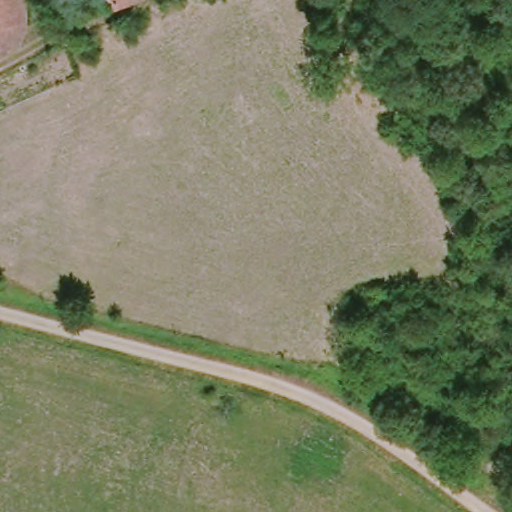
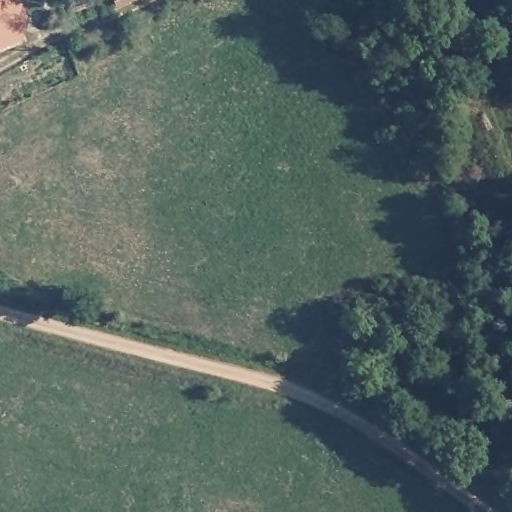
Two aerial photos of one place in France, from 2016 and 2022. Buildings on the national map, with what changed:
unchanged [(18,51),(0,60),(0,0),(24,0),(25,21),(18,51)]
unchanged [(116,0),(128,0),(118,5),(116,0)]

